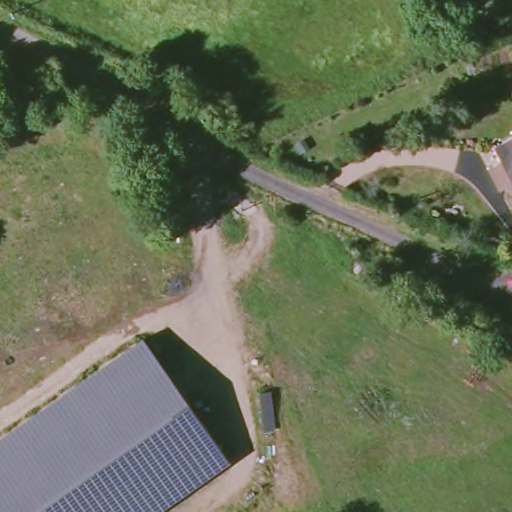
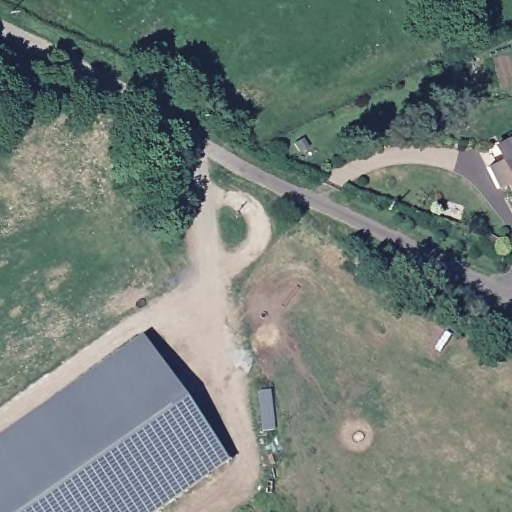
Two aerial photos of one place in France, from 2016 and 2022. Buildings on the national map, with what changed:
unchanged [(498,188),(487,167),(502,160),(495,146),(512,138),(512,181),(498,188)]
unchanged [(0,434),(140,336),(229,460),(154,512),(0,512),(0,434)]

